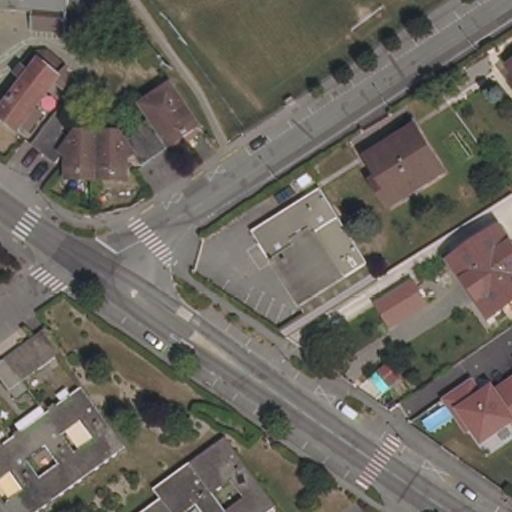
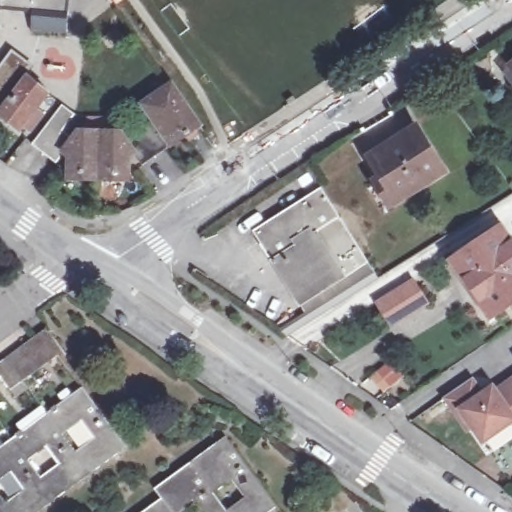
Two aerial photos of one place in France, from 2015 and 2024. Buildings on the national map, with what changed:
unchanged [(0,0),(71,0),(68,30),(34,26),(36,9),(13,6),(1,5),(0,10),(0,0)]
unchanged [(502,75),(511,68),(512,66),(512,86),(502,75)]
unchanged [(20,128),(17,131),(0,119),(0,110),(22,81),(26,78),(46,94),(45,95),(35,109),(43,116),(29,134),(20,128)]
unchanged [(170,146),(140,105),(170,84),(181,101),(198,126),(192,130),(196,135),(186,142),(182,136),(180,139),(170,146)]
unchanged [(59,106),(72,116),(60,131),(69,139),(75,131),(84,131),(85,116),(111,118),(111,131),(120,133),(125,140),(136,133),(132,129),(146,120),(165,150),(140,166),(132,156),(127,160),(127,177),(96,176),(67,175),(66,157),(61,154),(54,163),(30,145),(59,106)]
unchanged [(374,183),(384,178),(371,156),(416,129),(444,172),(399,201),(390,206),(374,183)]
unchanged [(254,232),(321,189),(368,263),(302,306),(254,232)]
unchanged [(455,262),(500,232),(512,249),(512,301),(492,316),(455,262)]
unchanged [(392,329),(375,304),(414,280),(431,307),(392,329)]
unchanged [(232,296),(242,284),(254,294),(245,305),(232,296)]
unchanged [(14,435),(35,419),(0,371),(0,359),(34,334),(48,324),(52,330),(65,348),(25,377),(48,409),(84,384),(129,443),(34,512),(0,512),(0,488),(2,491),(6,497),(7,498),(25,485),(22,480),(16,473),(12,469),(0,478),(0,434),(5,441),(14,435)]
unchanged [(481,449),(470,434),(464,436),(440,398),(472,377),(482,391),(493,385),(497,388),(512,380),(512,428),(481,449)]
unchanged [(163,504),(157,495),(228,443),(278,512),(234,512),(246,503),(234,487),(216,499),(225,512),(199,512),(198,512),(151,512),(163,504)]

